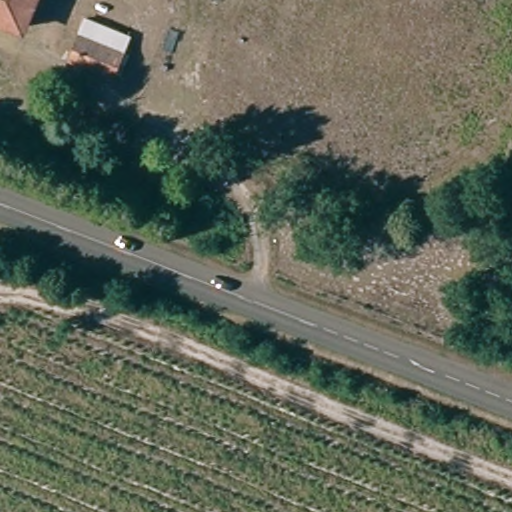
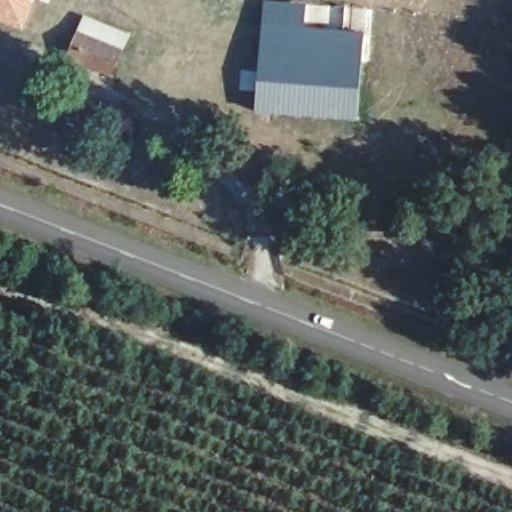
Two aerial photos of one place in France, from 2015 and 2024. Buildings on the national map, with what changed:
unchanged [(0,22),(0,11),(1,10),(0,10),(0,0),(38,0),(26,30),(0,22)]
new [(240,70),(256,71),(263,1),(333,6),(332,19),(344,20),(343,29),(364,31),(357,122),(253,114),(254,91),(238,90),(240,70)]
unchanged [(133,46),(118,76),(68,54),(83,26),(133,46)]

